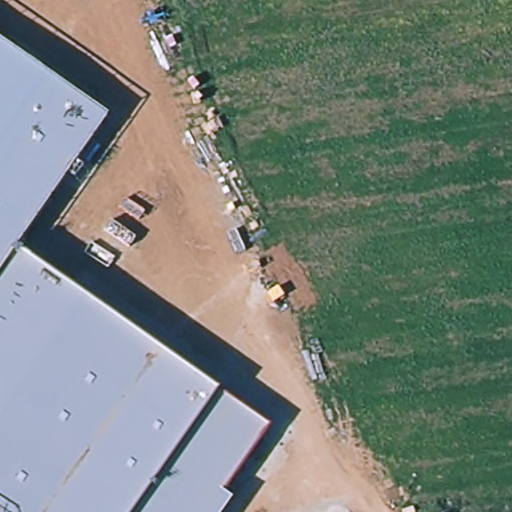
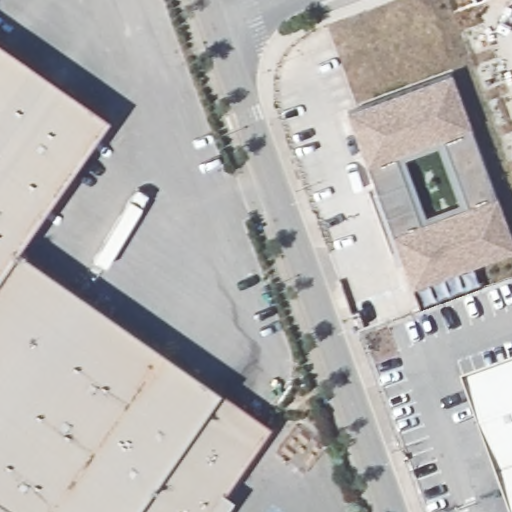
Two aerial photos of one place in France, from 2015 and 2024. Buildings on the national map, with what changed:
unchanged [(18,250),(269,426),(221,491),(231,498),(222,512),(0,512),(0,42),(108,117),(18,250)]
new [(453,76),(512,235),(512,252),(415,288),(351,112),(453,76)]
new [(511,512),(464,384),(512,367),(512,512),(511,512)]

